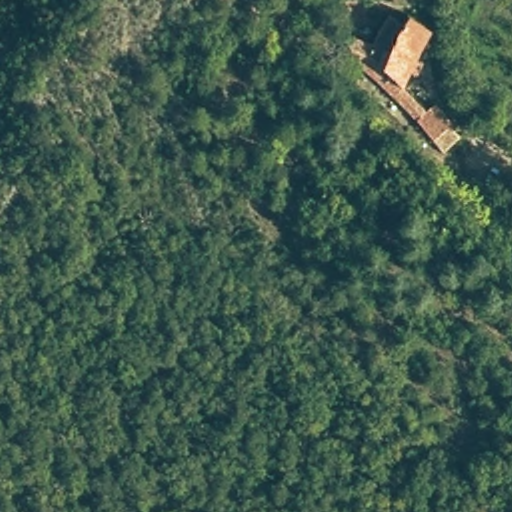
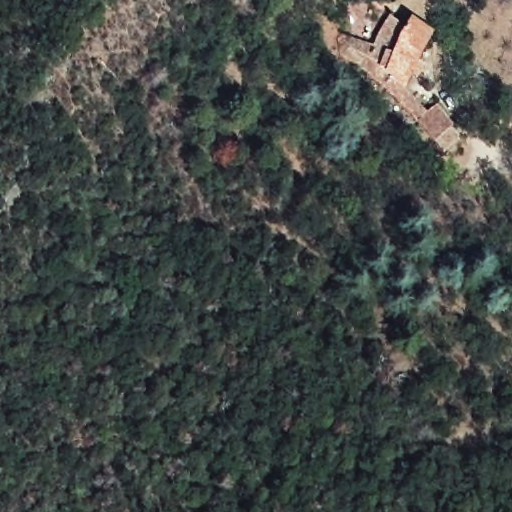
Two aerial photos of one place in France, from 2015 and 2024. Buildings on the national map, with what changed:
unchanged [(438,32),(411,80),(427,107),(439,102),(461,133),(440,152),(390,95),(379,74),(389,49),(376,39),(397,12),(438,32)]

